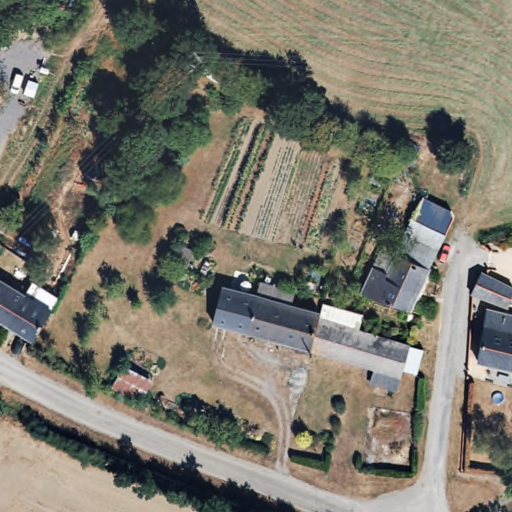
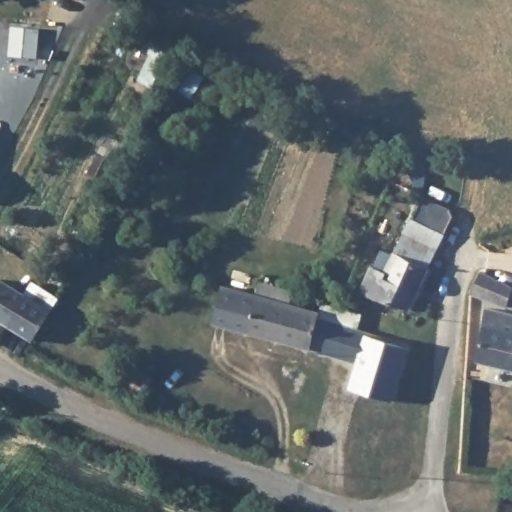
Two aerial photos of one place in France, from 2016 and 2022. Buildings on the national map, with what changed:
unchanged [(442,238),(431,266),(398,253),(400,248),(408,224),(442,238)]
unchanged [(431,266),(415,310),(365,287),(386,242),(400,248),(398,253),(431,266)]
unchanged [(512,283),(512,312),(511,314),(468,296),(481,270),(512,283)]
unchanged [(355,369),(307,353),(281,345),(253,336),(220,324),(235,285),(267,296),(273,282),(301,292),(296,306),(321,314),(326,302),(363,314),(356,334),(366,337),(355,369)]
unchanged [(40,334),(37,340),(5,322),(0,320),(0,288),(18,296),(50,314),(40,334)]
unchanged [(512,370),(476,362),(488,314),(512,318),(512,370)]
unchanged [(408,350),(396,397),(373,391),(377,375),(355,369),(366,337),(408,350)]

